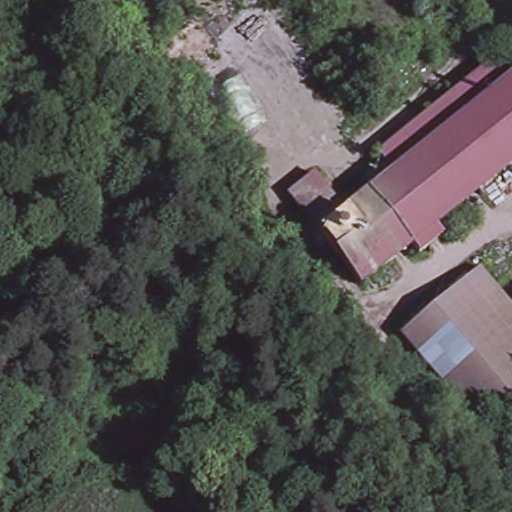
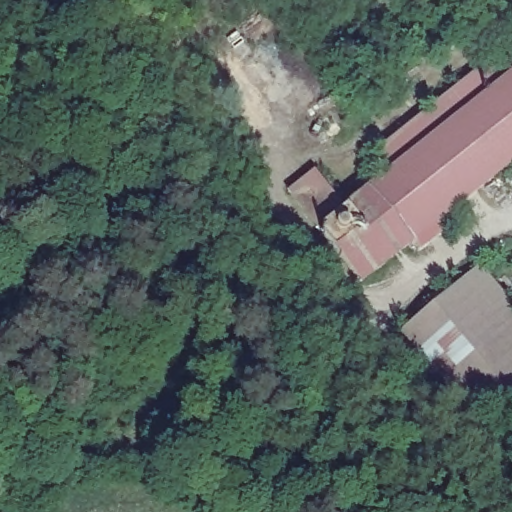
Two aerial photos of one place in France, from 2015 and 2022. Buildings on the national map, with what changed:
unchanged [(379,149),(512,47),(512,77),(395,168),(379,149)]
unchanged [(445,230),(420,250),(412,241),(362,279),(321,227),(346,206),(395,168),(512,77),(512,164),(439,220),(445,230)]
unchanged [(290,188),(315,167),(346,206),(321,227),(290,188)]
unchanged [(512,397),(477,426),(397,330),(478,264),(512,306),(512,397)]

